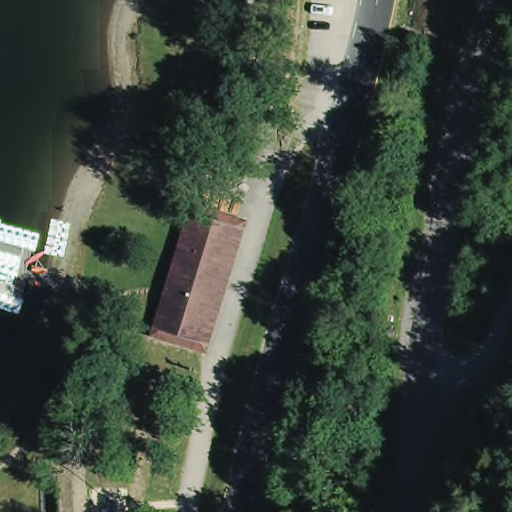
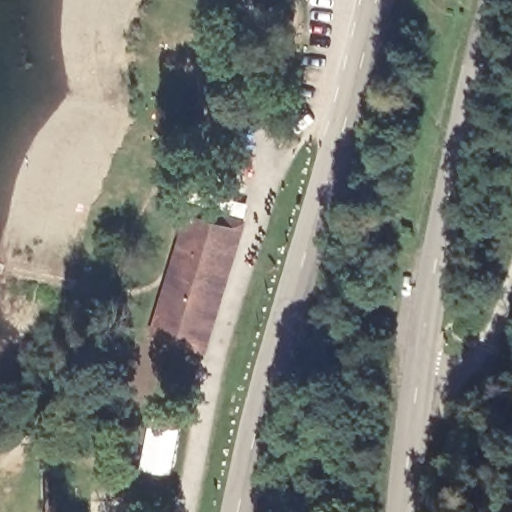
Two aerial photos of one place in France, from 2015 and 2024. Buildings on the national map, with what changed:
unchanged [(243,232),(207,354),(148,337),(187,209),(243,232)]

